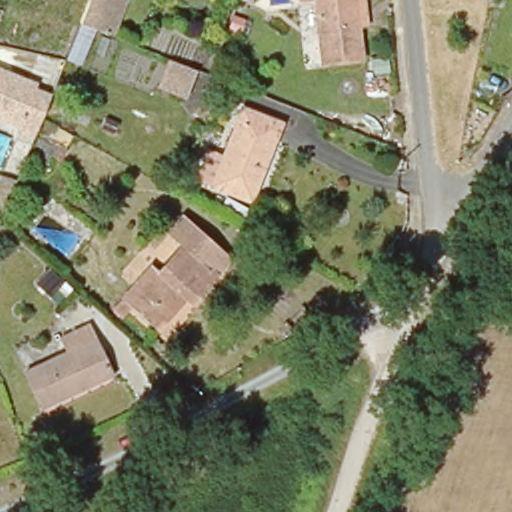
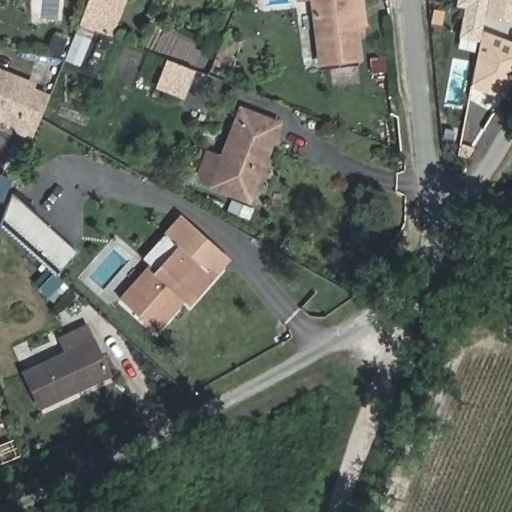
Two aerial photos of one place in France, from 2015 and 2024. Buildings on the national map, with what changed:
unchanged [(117,42),(96,34),(84,68),(71,63),(93,0),(132,0),(117,42)]
unchanged [(362,61),(324,66),(317,0),(355,0),(362,61)]
new [(512,20),(486,15),(482,30),(512,41),(512,82),(503,98),(469,86),(478,41),(459,38),(463,8),(456,6),(457,0),(512,0),(512,20)]
unchanged [(154,82),(164,60),(190,71),(179,94),(154,82)]
unchanged [(45,105),(32,139),(11,130),(12,121),(0,115),(0,77),(26,89),(25,91),(47,100),(45,105)]
unchanged [(281,129),(241,205),(206,186),(241,112),(281,129)]
new [(60,272),(3,220),(12,194),(78,252),(60,272)]
unchanged [(233,262),(220,278),(222,282),(194,311),(186,304),(159,334),(125,303),(155,270),(161,275),(184,250),(176,242),(191,224),(233,262)]
unchanged [(87,327),(112,377),(42,415),(26,383),(73,358),(64,340),(87,327)]

